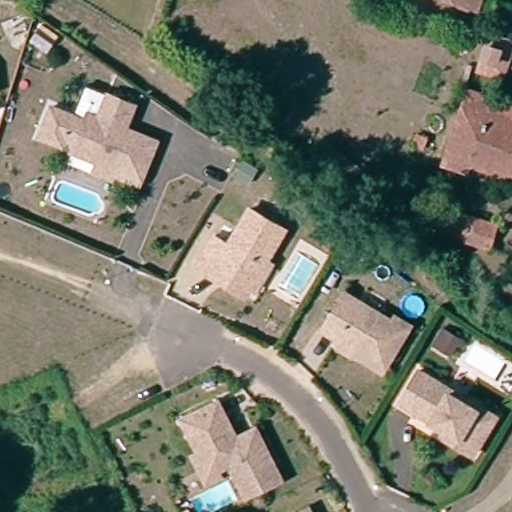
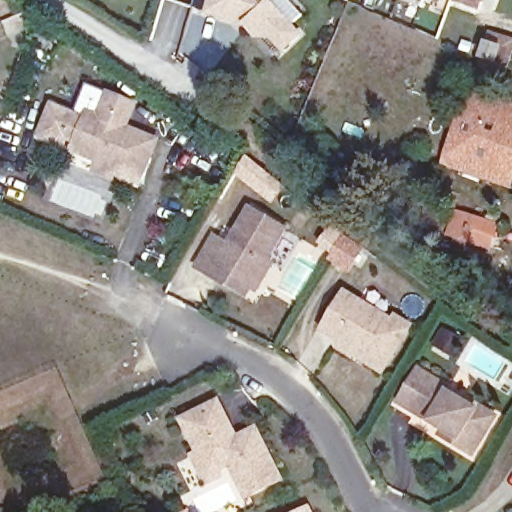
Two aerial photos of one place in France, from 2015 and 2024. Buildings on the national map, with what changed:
new [(267,39),(253,39),(244,25),(202,13),(205,8),(194,5),(196,0),(273,0),(272,2),(301,34),(281,53),(267,39)]
unchanged [(478,4),(468,0),(478,0),(478,1),(478,4)]
unchanged [(512,169),(501,165),(450,148),(464,106),(464,103),(464,94),(489,102),(491,94),(512,101),(512,169)]
unchanged [(98,172),(102,163),(86,157),(76,154),(79,145),(69,141),(66,148),(48,141),(43,139),(45,134),(55,109),(89,122),(91,115),(102,119),(104,115),(111,96),(138,106),(129,130),(144,135),(160,141),(144,185),(120,176),(118,180),(98,172)]
unchanged [(211,277),(196,268),(214,238),(228,246),(249,209),(285,230),(266,262),(271,265),(256,291),(251,288),(246,297),(211,277)]
unchanged [(493,243),(465,234),(455,231),(462,210),(470,213),(499,222),(493,243)]
new [(343,234),(360,247),(347,270),(328,258),(343,234)]
unchanged [(356,352),(341,343),(345,336),(327,325),(349,288),(397,316),(399,312),(414,321),(387,367),(367,356),(357,350),(356,352)]
unchanged [(448,425),(403,398),(423,366),(500,412),(477,450),(459,439),(445,431),(448,425)]
unchanged [(196,450),(202,447),(185,413),(221,395),(239,432),(248,427),(258,422),(263,432),(283,474),(248,491),(232,458),(219,464),(222,470),(209,477),(196,450)]
unchanged [(305,502),(310,512),(286,512),(305,502)]

